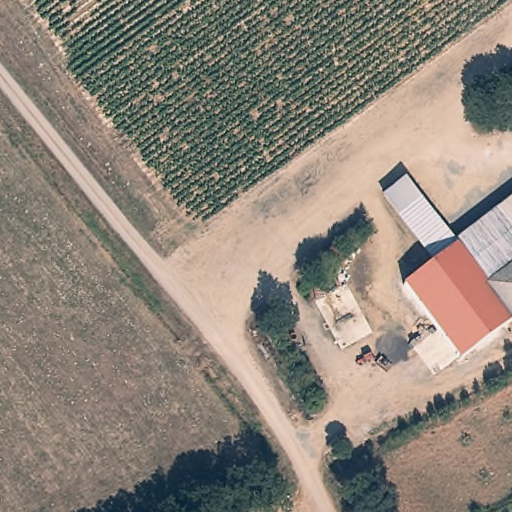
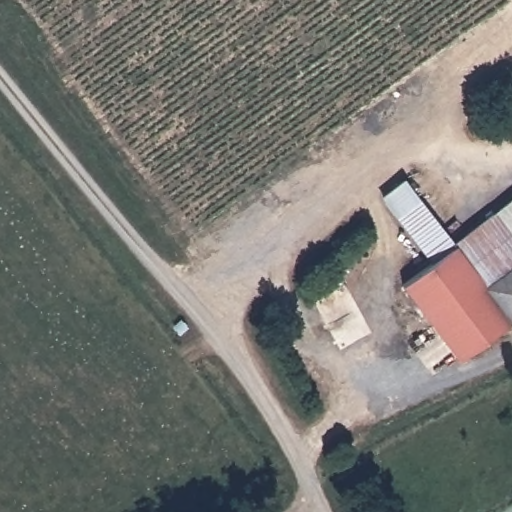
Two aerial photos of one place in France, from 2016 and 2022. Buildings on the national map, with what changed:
unchanged [(454,238),(433,253),(396,200),(390,191),(411,176),(415,182),(454,238)]
unchanged [(457,242),(454,238),(512,198),(512,259),(483,279),(457,242)]
unchanged [(457,242),(483,279),(512,318),(512,319),(459,359),(403,283),(457,242)]
unchanged [(512,259),(512,318),(483,279),(512,259)]

